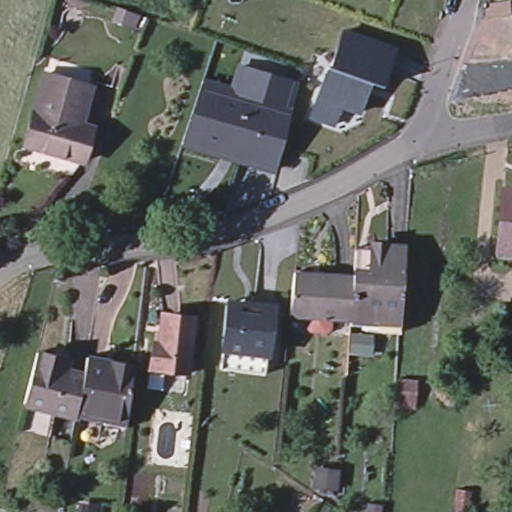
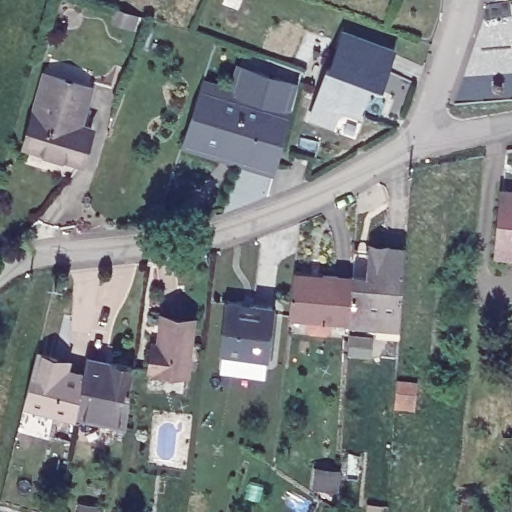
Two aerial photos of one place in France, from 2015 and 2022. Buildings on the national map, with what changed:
unchanged [(134,24),(127,22),(113,17),(117,6),(132,10),(138,12),(134,24)]
unchanged [(394,46),(381,84),(369,80),(366,88),(356,116),(340,124),(310,114),(324,75),(327,64),(330,65),(343,28),(394,46)]
unchanged [(205,81),(230,87),(237,66),(298,86),(274,174),(184,149),(205,81)]
unchanged [(89,136),(82,159),(25,142),(45,71),(90,84),(80,122),(92,125),(89,136)]
unchanged [(510,248),(494,247),(499,187),(512,188),(512,248),(510,248)]
unchanged [(379,331),(379,326),(372,325),(346,324),(345,333),(285,329),(286,314),(290,275),(319,276),(320,274),(350,275),(351,247),(367,248),(367,244),(377,245),(402,246),(397,314),(397,331),(379,331)]
unchanged [(228,296),(270,300),(265,347),(262,365),(220,360),(222,342),(228,296)]
unchanged [(190,319),(185,371),(145,367),(148,347),(152,320),(159,321),(159,315),(190,319)]
unchanged [(54,355),(65,358),(64,367),(80,372),(72,412),(72,414),(20,401),(33,351),(54,355)]
unchanged [(72,412),(80,372),(82,362),(83,357),(109,360),(130,363),(124,412),(122,424),(99,421),(100,415),(72,412)]
unchanged [(393,379),(410,380),(410,397),(409,407),(391,406),(392,397),(393,379)]
unchanged [(337,491),(305,489),(307,470),(336,472),(337,491)]

